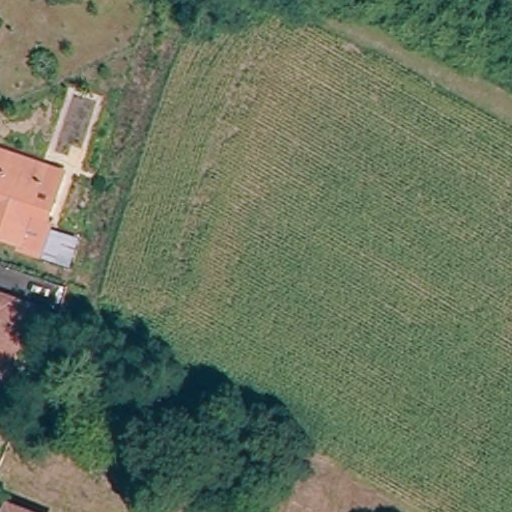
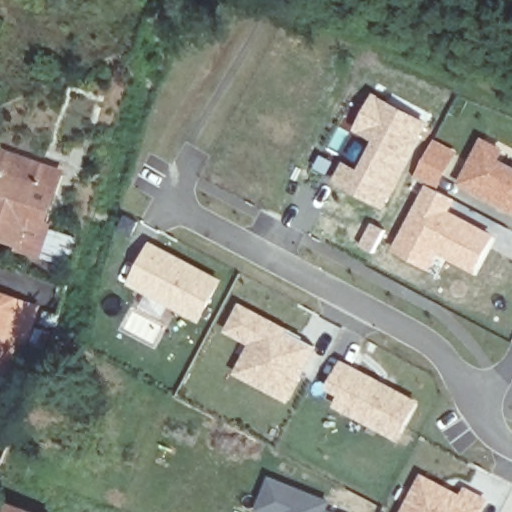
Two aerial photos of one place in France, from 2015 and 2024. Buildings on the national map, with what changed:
new [(344,160),(358,168),(372,142),(353,131),(375,93),(429,124),(383,210),(332,182),(344,160)]
new [(481,136),(504,149),(500,159),(512,164),(512,214),(457,184),(481,136)]
new [(434,139),(458,151),(437,189),(426,183),(414,176),(434,139)]
unchanged [(37,247),(15,240),(16,236),(0,230),(0,145),(44,160),(61,166),(43,219),(46,220),(46,224),(75,234),(66,260),(36,250),(37,247)]
new [(426,183),(437,189),(437,190),(455,200),(449,210),(495,235),(473,275),(439,255),(428,271),(391,250),(426,183)]
new [(150,240),(223,279),(199,323),(169,307),(161,320),(139,307),(145,295),(128,285),(150,240)]
unchanged [(0,295),(36,307),(23,346),(19,345),(15,354),(7,380),(0,377),(0,295)]
new [(239,302),(274,320),(317,346),(287,403),(232,374),(247,345),(223,331),(239,302)]
new [(341,360),(419,401),(397,441),(332,406),(338,396),(326,390),(341,360)]
new [(460,492),(464,485),(489,498),(481,512),(400,512),(421,472),(460,492)]
new [(270,476),(332,501),(329,509),(336,512),(259,512),(258,511),(270,476)]
unchanged [(3,512),(6,503),(27,512),(3,512)]

